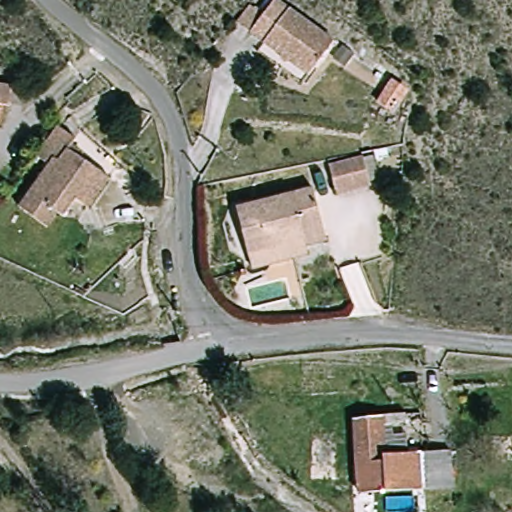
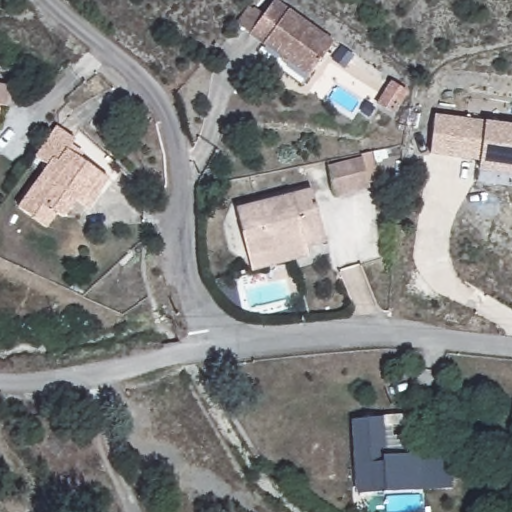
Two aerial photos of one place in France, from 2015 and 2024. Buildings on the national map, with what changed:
unchanged [(262,34),(244,19),(259,0),(287,0),(289,2),(346,50),(319,81),(262,34)]
unchanged [(8,100),(7,100),(0,99),(0,79),(12,81),(8,100)]
unchanged [(0,99),(7,100),(1,128),(0,128),(0,99)]
new [(481,160),(430,155),(435,114),(486,120),(512,124),(512,175),(480,171),(481,160)]
unchanged [(88,205),(76,196),(64,214),(58,210),(47,225),(20,205),(50,162),(37,154),(53,131),(58,124),(76,136),(69,146),(97,166),(110,175),(88,205)]
unchanged [(344,156),(360,154),(365,189),(330,195),(325,159),(344,156)]
unchanged [(241,201),(316,188),(326,242),(307,246),(305,236),(249,246),(241,201)]
unchanged [(305,236),(307,246),(309,255),(252,265),(249,246),(305,236)]
unchanged [(356,491),(355,415),(409,412),(410,450),(454,447),(456,486),(356,491)]

